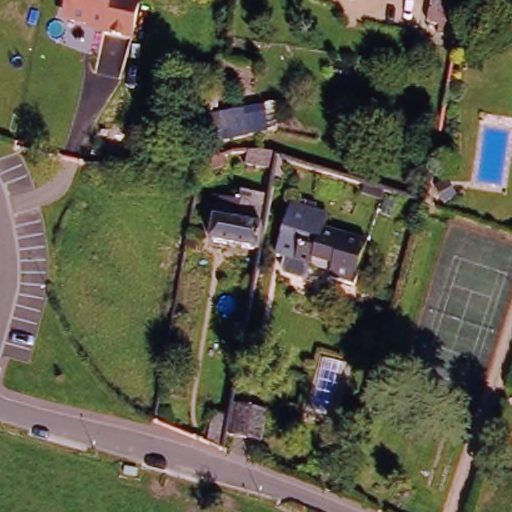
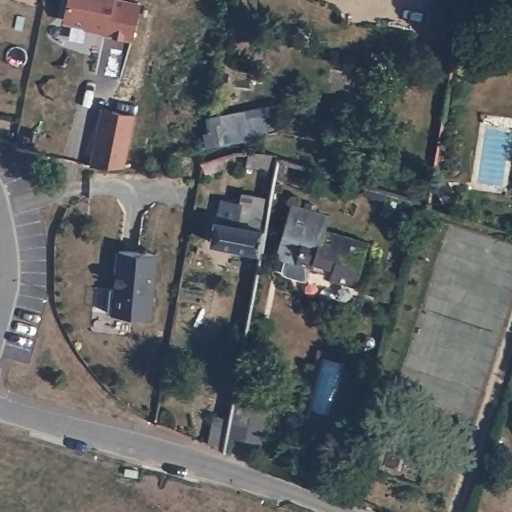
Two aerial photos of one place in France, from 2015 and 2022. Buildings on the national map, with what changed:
unchanged [(128,0),(143,5),(136,36),(66,22),(70,0),(128,0)]
unchanged [(424,0),(456,0),(455,11),(423,6),(424,0)]
new [(101,108),(135,114),(125,168),(90,163),(101,108)]
unchanged [(202,141),(205,116),(278,114),(277,130),(202,141)]
unchanged [(253,155),(260,156),(256,172),(239,169),(240,156),(253,155)]
unchanged [(249,209),(250,201),(265,204),(264,209),(256,257),(210,248),(215,226),(219,204),(249,209)]
unchanged [(366,241),(356,284),(330,278),(332,272),(312,268),(310,278),(307,282),(285,276),(284,271),(286,262),(278,260),(290,207),(325,215),(321,230),(366,241)]
new [(110,288),(116,289),(119,252),(156,255),(150,317),(108,313),(110,288)]
unchanged [(267,410),(262,440),(232,435),(237,405),(267,410)]

